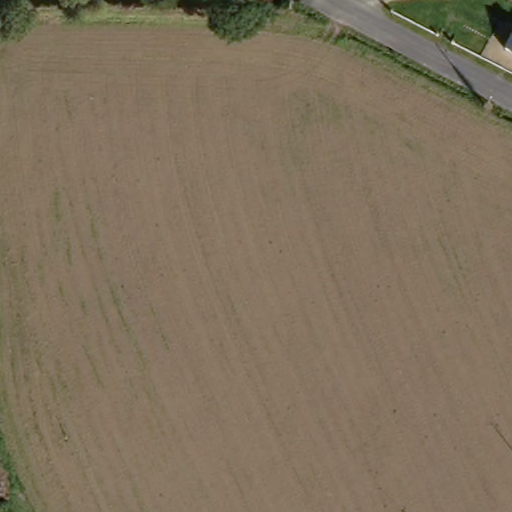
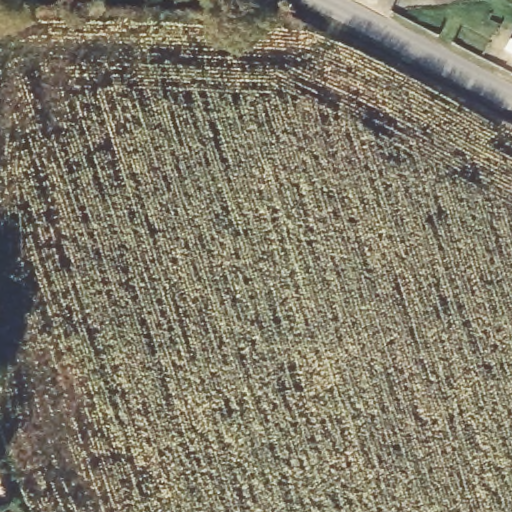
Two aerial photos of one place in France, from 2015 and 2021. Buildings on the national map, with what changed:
unchanged [(507,50),(512,40),(512,53),(507,50)]

